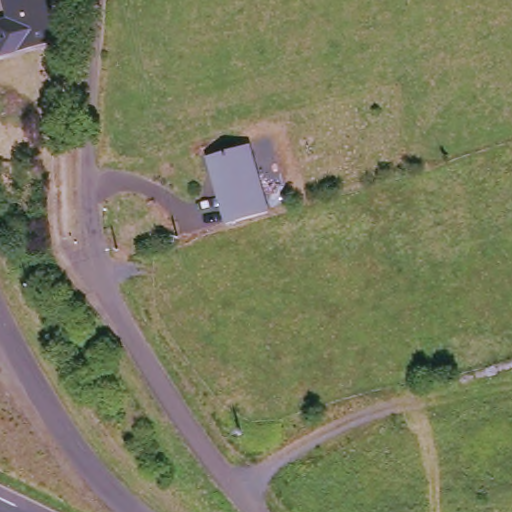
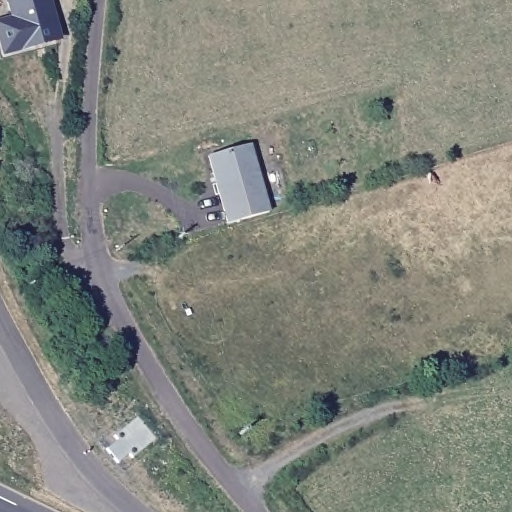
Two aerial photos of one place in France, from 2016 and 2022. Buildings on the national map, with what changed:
unchanged [(0,57),(0,0),(45,0),(54,25),(57,39),(37,45),(0,57)]
unchanged [(209,161),(250,149),(269,213),(250,219),(227,225),(209,161)]

